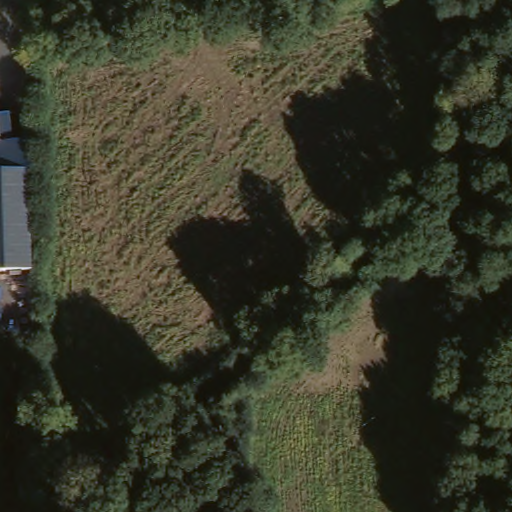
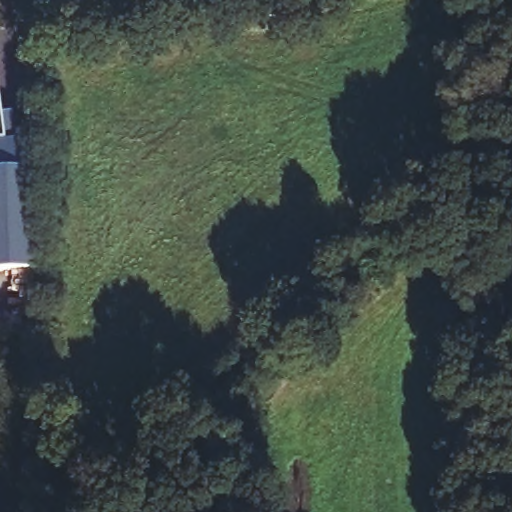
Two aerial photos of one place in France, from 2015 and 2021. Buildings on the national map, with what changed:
unchanged [(27,272),(0,273),(0,173),(26,172),(27,272)]

